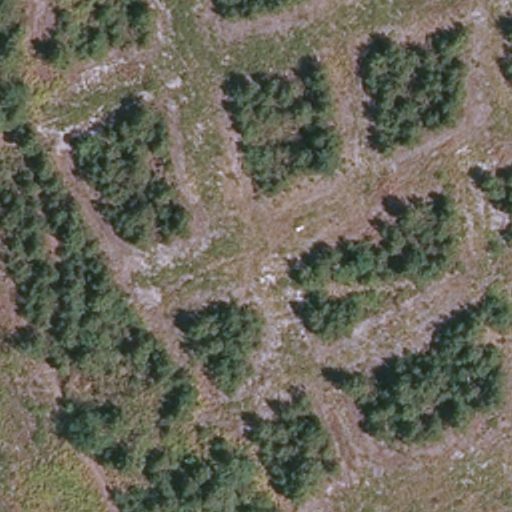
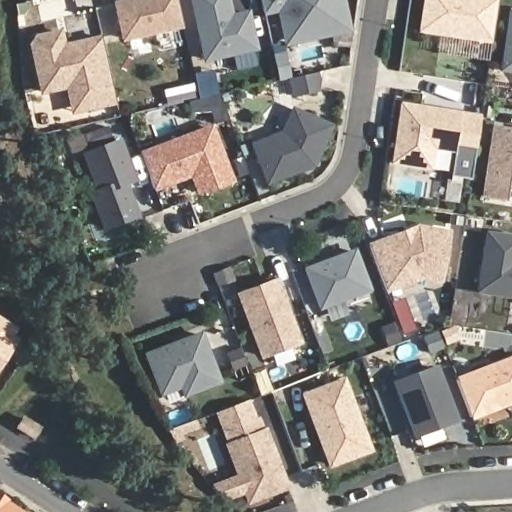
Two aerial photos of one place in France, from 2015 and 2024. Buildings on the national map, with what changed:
new [(121,41),(111,1),(116,0),(176,0),(182,28),(121,41)]
new [(203,62),(189,0),(229,0),(232,12),(248,9),(257,50),(203,62)]
new [(350,32),(283,47),(276,12),(263,15),(260,0),(344,0),(350,32)]
new [(416,31),(421,0),(496,0),(490,43),(416,31)]
new [(506,7),(512,8),(512,73),(498,71),(506,7)]
new [(70,114),(65,89),(40,94),(29,43),(35,34),(62,28),(65,41),(100,33),(116,104),(70,114)]
new [(473,155),(433,149),(430,170),(389,163),(398,100),(480,113),(473,155)]
new [(315,165),(266,185),(249,142),(279,130),(291,104),(333,124),(315,165)]
new [(196,196),(189,178),(154,191),(138,150),(212,123),(235,181),(196,196)]
new [(503,200),(479,196),(490,124),(512,128),(512,168),(508,167),(503,200)]
new [(102,230),(86,190),(92,188),(79,152),(89,149),(84,134),(109,125),(113,139),(120,136),(136,180),(127,184),(139,215),(102,230)]
new [(421,278),(385,293),(366,242),(417,223),(450,229),(440,281),(421,278)]
new [(483,229),(512,234),(512,298),(474,292),(483,229)]
new [(318,312),(301,267),(355,247),(371,290),(318,312)]
new [(261,359),(235,291),(276,276),(301,343),(261,359)]
new [(14,327),(10,334),(15,338),(0,361),(0,319),(14,327)]
new [(184,398),(180,390),(160,397),(141,352),(201,329),(221,383),(184,398)]
new [(455,376),(512,355),(512,404),(471,419),(455,376)]
new [(413,438),(391,381),(437,364),(458,420),(413,438)]
new [(328,468),(300,393),(345,377),(372,451),(328,468)]
new [(246,504),(242,494),(226,500),(210,484),(235,474),(216,412),(256,398),(290,487),(246,504)]
new [(25,512),(0,512),(0,496),(25,512)]

